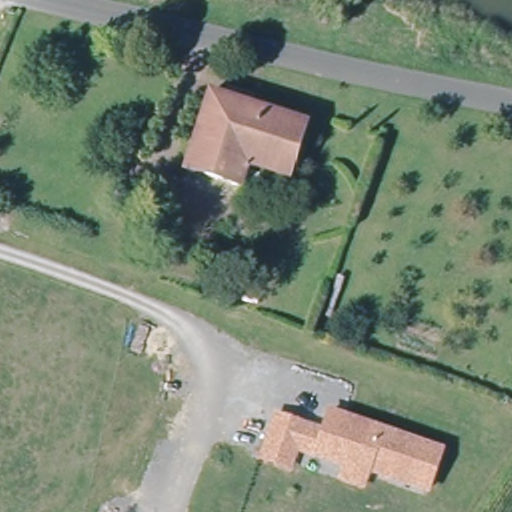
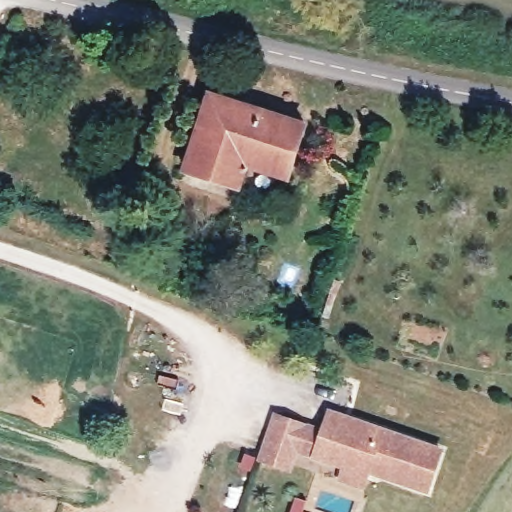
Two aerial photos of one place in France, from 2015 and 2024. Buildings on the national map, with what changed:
unchanged [(306,119),(290,181),(242,169),(237,186),(186,173),(206,95),(306,119)]
unchanged [(321,428),(327,408),(444,448),(429,495),(369,475),(365,490),(337,481),(341,468),(311,457),(298,454),(292,472),(258,461),(273,413),(321,428)]

